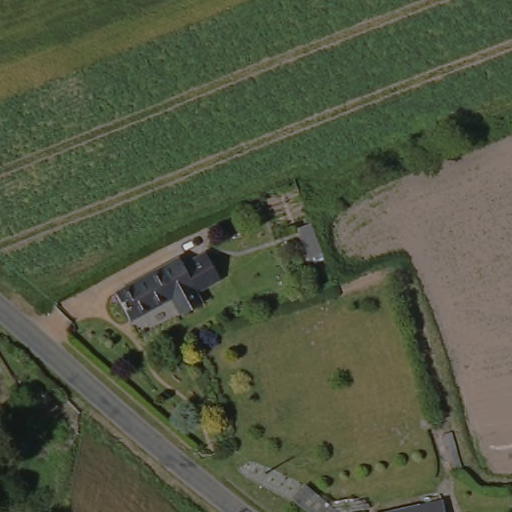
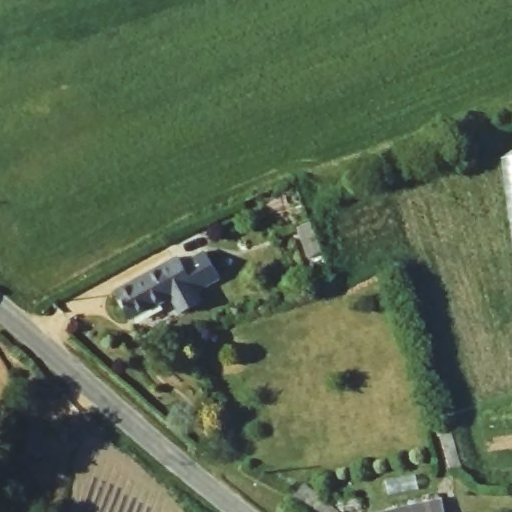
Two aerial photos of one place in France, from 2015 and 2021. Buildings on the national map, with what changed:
new [(512,155),(512,224),(503,156),(512,155)]
unchanged [(311,245),(328,242),(334,274),(317,277),(311,245)]
unchanged [(166,304),(124,327),(109,298),(173,263),(176,267),(199,255),(214,282),(194,293),(201,307),(177,321),(166,304)]
unchanged [(289,506),(304,491),(329,512),(296,512),(289,506)]
unchanged [(401,509),(416,507),(415,497),(441,494),(442,503),(441,505),(441,512),(401,512),(401,509)]
unchanged [(368,512),(382,511),(401,509),(401,512),(368,512)]

